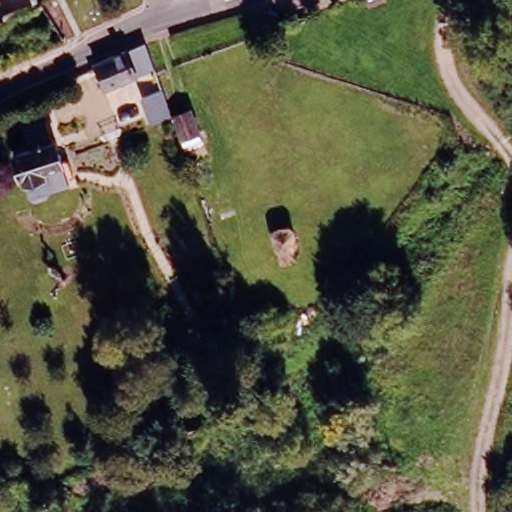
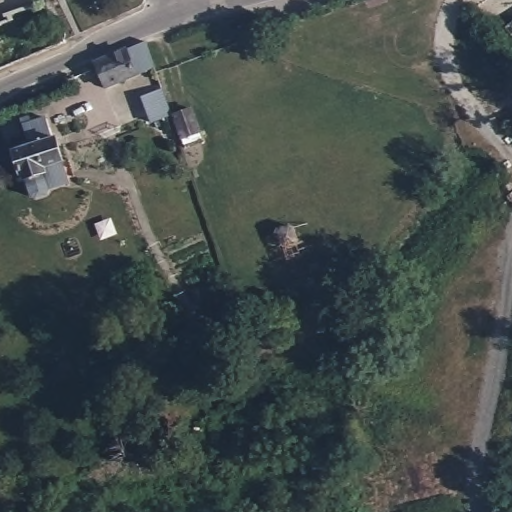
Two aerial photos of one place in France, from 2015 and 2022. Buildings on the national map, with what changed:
unchanged [(278,48),(273,34),(282,30),(287,45),(278,48)]
unchanged [(87,65),(118,52),(139,43),(145,63),(146,67),(128,74),(129,76),(99,89),(87,65)]
unchanged [(145,94),(165,87),(173,110),(155,118),(145,94)]
unchanged [(191,103),(204,137),(188,143),(176,109),(191,103)]
unchanged [(1,135),(0,134),(0,131),(13,126),(9,115),(31,107),(39,126),(42,125),(51,148),(60,168),(41,176),(38,181),(27,186),(21,184),(14,167),(13,168),(0,137),(0,135),(1,135)]
unchanged [(299,238),(295,240),(298,248),(288,252),(285,243),(283,244),(277,226),(292,221),(299,238)]
unchanged [(250,333),(239,337),(228,306),(239,302),(250,333)]

